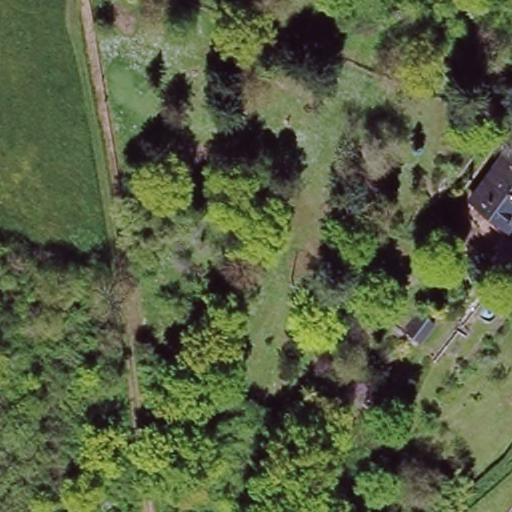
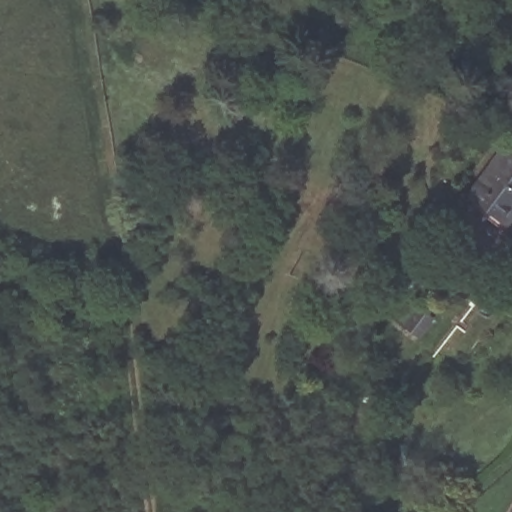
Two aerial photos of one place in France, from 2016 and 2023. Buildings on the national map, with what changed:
unchanged [(507,146),(512,150),(512,211),(503,224),(469,197),(507,146)]
unchanged [(407,323),(424,303),(437,314),(421,334),(407,323)]

